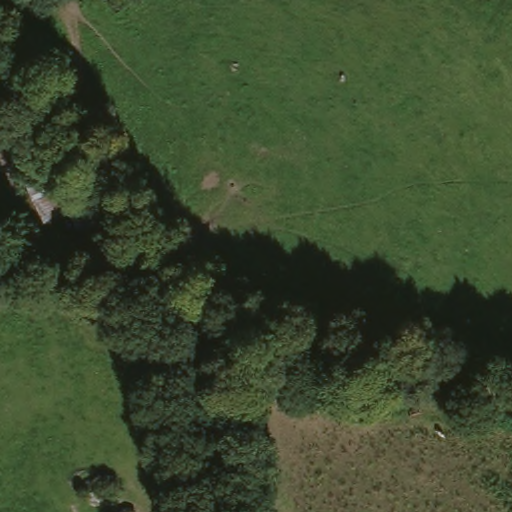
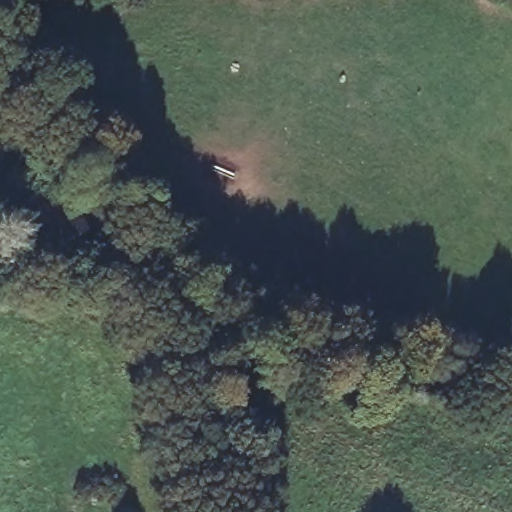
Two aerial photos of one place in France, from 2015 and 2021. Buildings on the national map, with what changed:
unchanged [(55,174),(74,216),(44,232),(26,189),(55,174)]

